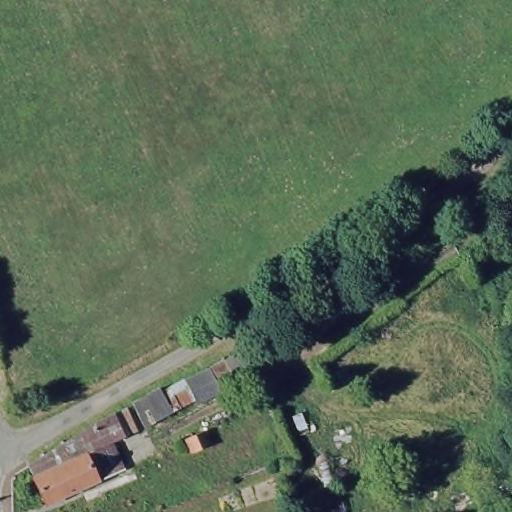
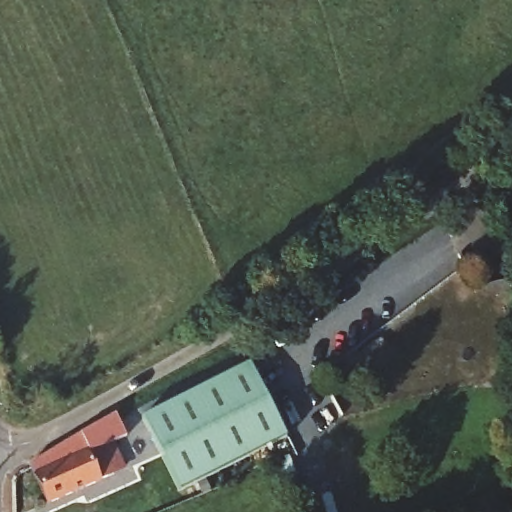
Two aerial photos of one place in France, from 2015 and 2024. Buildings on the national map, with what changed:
new [(180,493),(142,418),(249,364),(287,439),(180,493)]
unchanged [(121,404),(134,430),(107,441),(118,466),(105,471),(82,424),(121,404)]
unchanged [(82,424),(105,471),(105,474),(39,501),(22,459),(82,424)]

